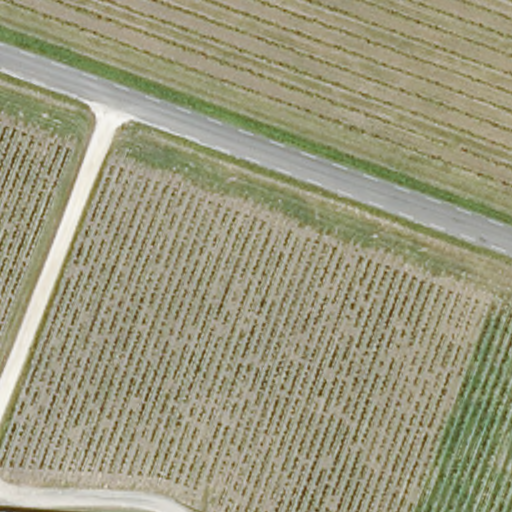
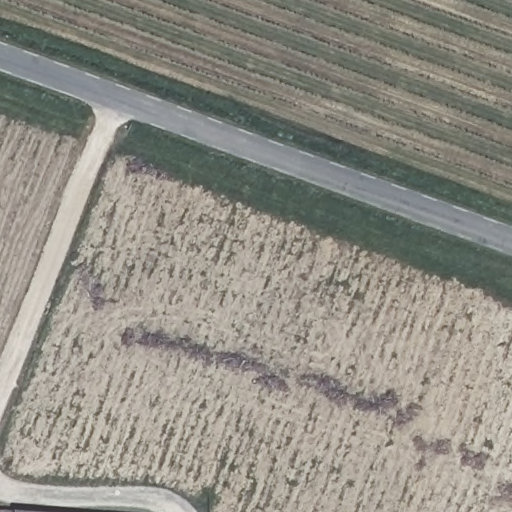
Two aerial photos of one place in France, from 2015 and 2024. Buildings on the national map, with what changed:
unchanged [(0,512),(0,509),(53,512),(0,512)]

